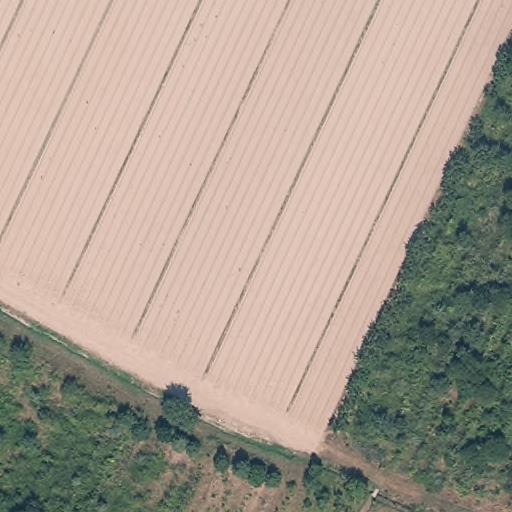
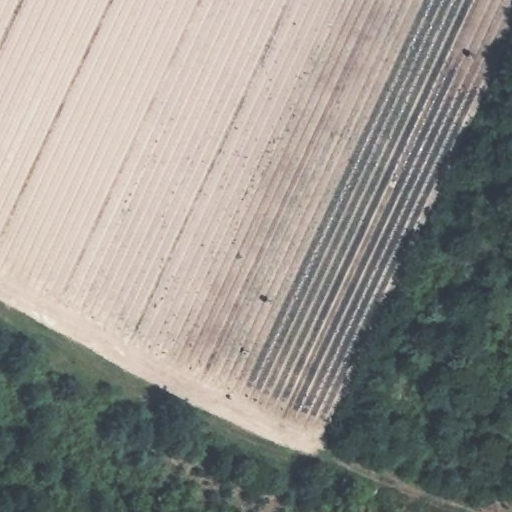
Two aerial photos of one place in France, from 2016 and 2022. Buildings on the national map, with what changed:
[]

